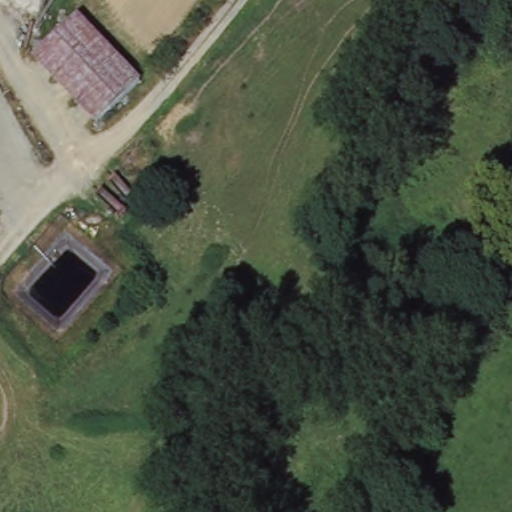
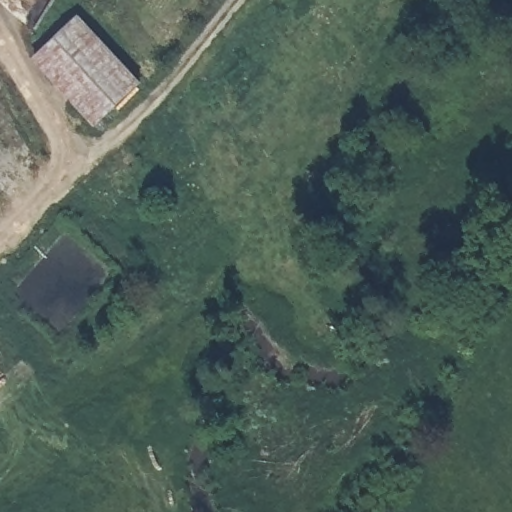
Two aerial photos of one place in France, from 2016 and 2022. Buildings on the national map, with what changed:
unchanged [(84,12),(145,78),(98,126),(36,57),(84,12)]

